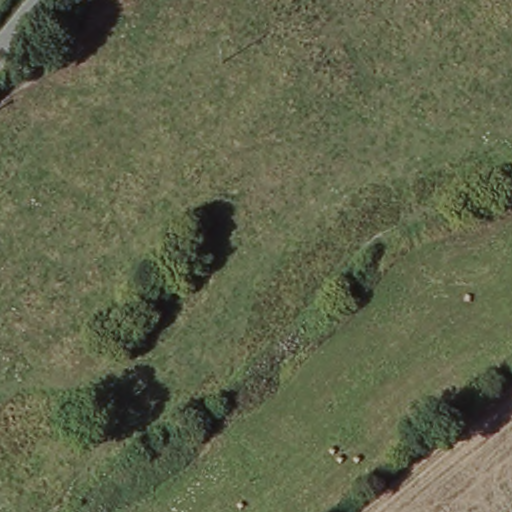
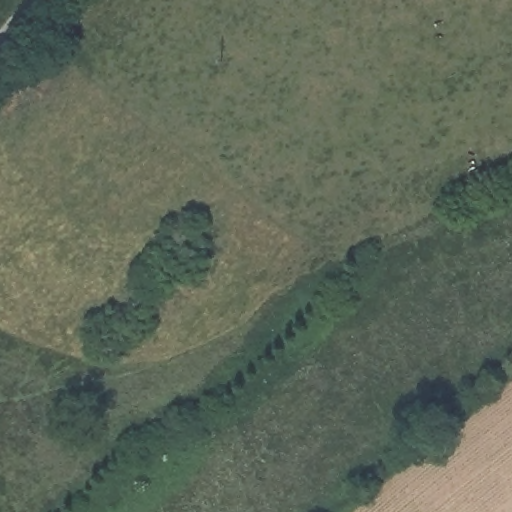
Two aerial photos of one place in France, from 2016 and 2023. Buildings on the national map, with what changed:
[]

